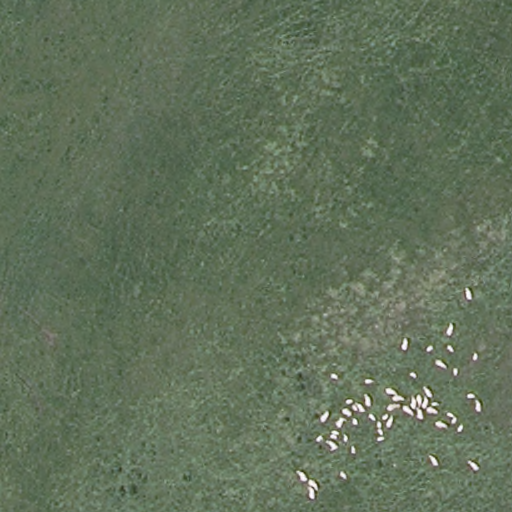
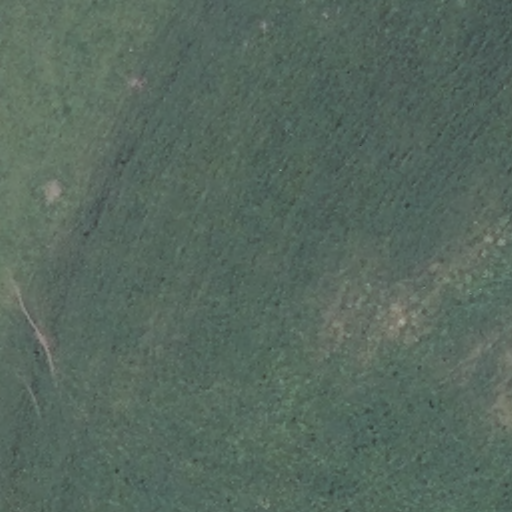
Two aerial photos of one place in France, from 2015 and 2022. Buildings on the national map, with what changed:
[]

